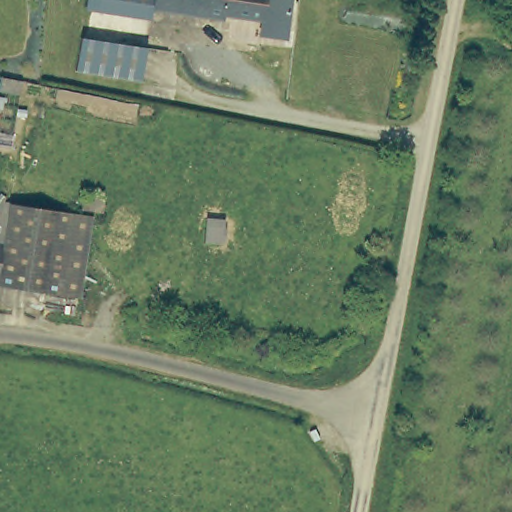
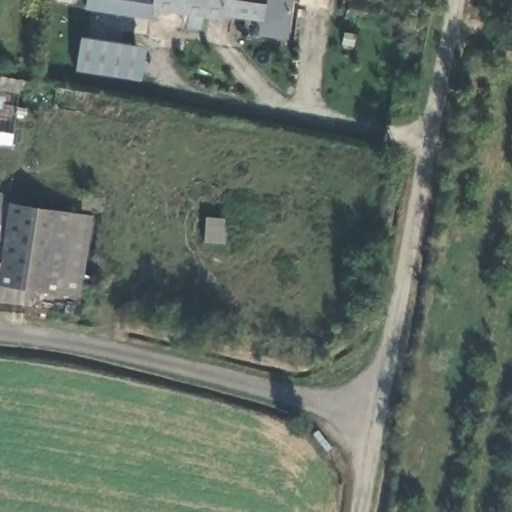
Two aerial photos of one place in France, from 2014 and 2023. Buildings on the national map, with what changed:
unchanged [(148,9),(136,78),(72,66),(82,0),(149,0),(148,9)]
unchanged [(261,20),(222,14),(221,20),(148,9),(149,0),(290,0),(283,40),(258,36),(261,20)]
unchanged [(88,216),(76,297),(0,286),(0,247),(0,243),(5,210),(6,203),(88,216)]
unchanged [(0,209),(5,210),(0,243),(0,209)]

